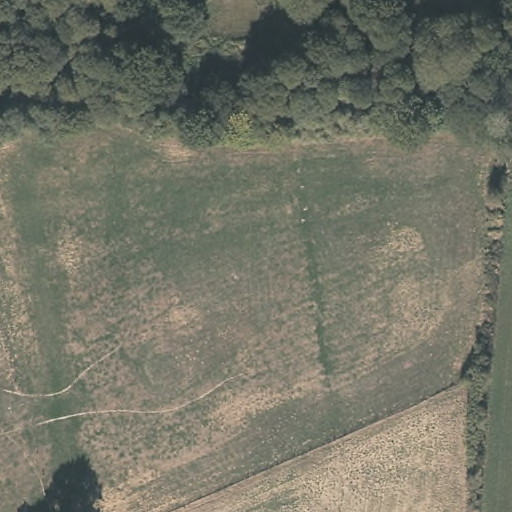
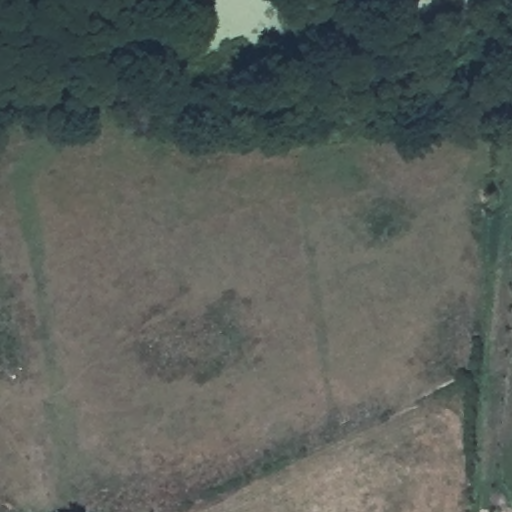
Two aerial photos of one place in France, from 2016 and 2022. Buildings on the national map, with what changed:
[]

